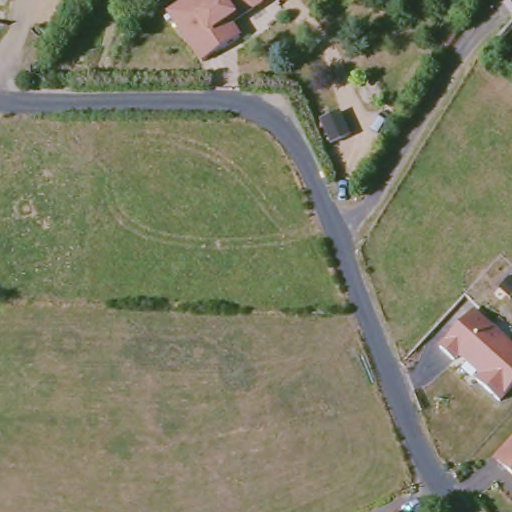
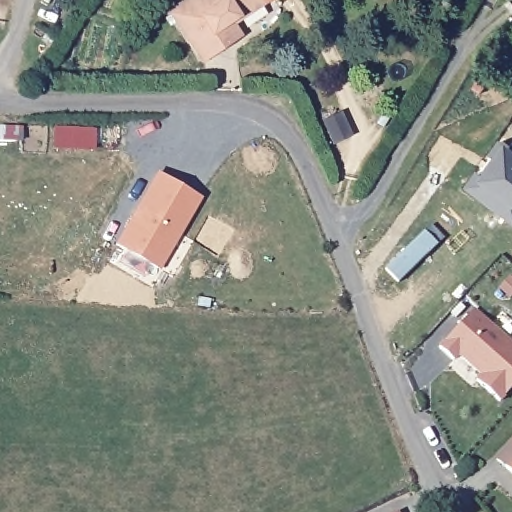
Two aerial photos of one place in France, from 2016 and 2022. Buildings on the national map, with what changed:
unchanged [(179,0),(257,0),(259,3),(231,21),(228,17),(222,21),(231,36),(193,60),(163,10),(179,0)]
unchanged [(257,0),(263,0),(259,3),(257,0)]
unchanged [(344,108),(353,132),(334,139),(326,115),(344,108)]
new [(113,244),(155,171),(201,197),(157,269),(113,244)]
unchanged [(474,378),(479,373),(458,353),(454,358),(438,344),(474,307),(512,342),(512,385),(499,399),(474,378)]
unchanged [(492,462),(512,439),(512,480),(492,462)]

